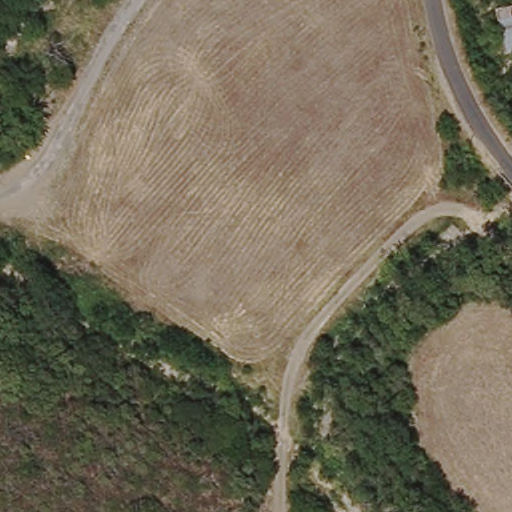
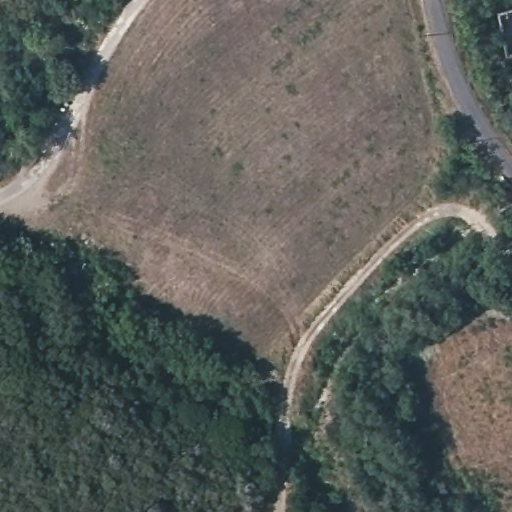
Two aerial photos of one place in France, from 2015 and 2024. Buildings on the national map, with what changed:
unchanged [(503,0),(512,0),(512,12),(495,15),(492,2),(503,0)]
unchanged [(497,20),(512,18),(512,49),(504,50),(497,20)]

